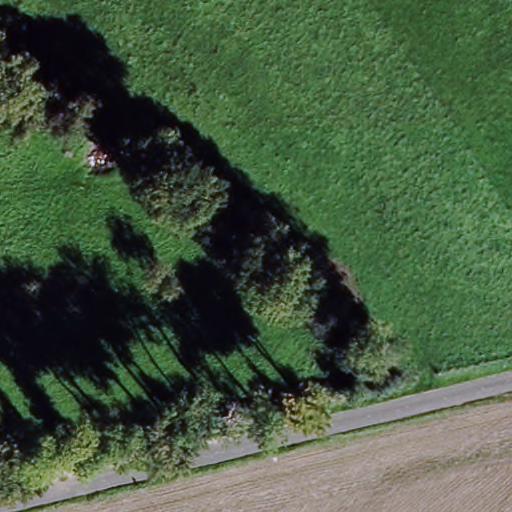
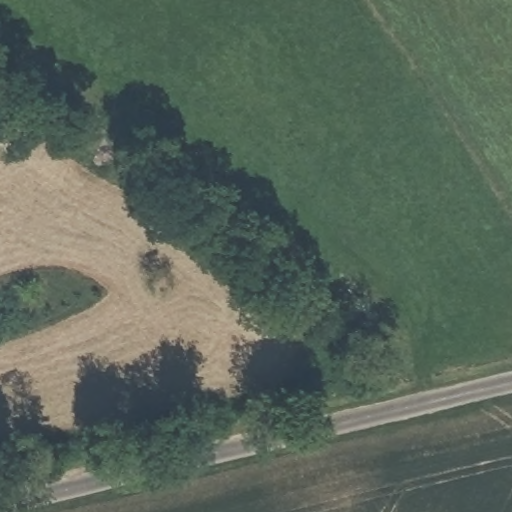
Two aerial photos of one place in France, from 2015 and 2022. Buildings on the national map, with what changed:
unchanged [(25,29),(3,74),(0,73),(0,14),(25,29)]

